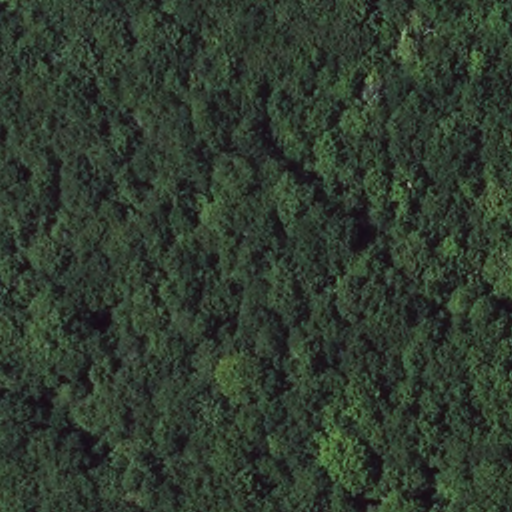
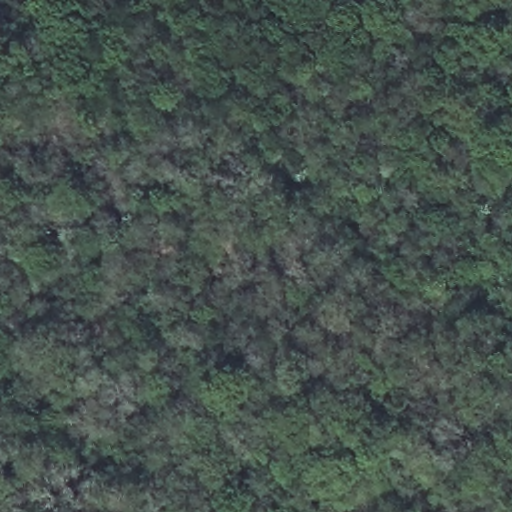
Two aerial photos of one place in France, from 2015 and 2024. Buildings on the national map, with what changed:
[]

